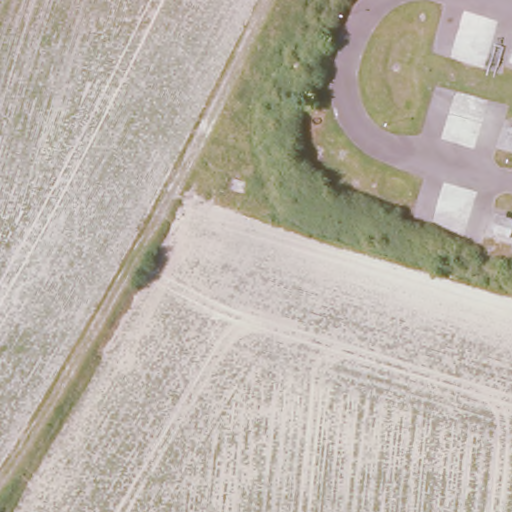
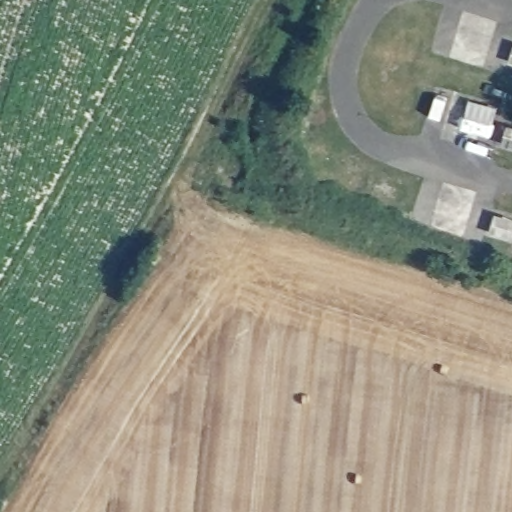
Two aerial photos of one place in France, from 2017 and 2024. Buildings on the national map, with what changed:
unchanged [(512,57),(512,59),(511,59),(512,57)]
unchanged [(507,133),(510,124),(512,124),(512,143),(505,141),(507,133)]
unchanged [(495,220),(498,211),(512,216),(512,232),(511,235),(493,230),(495,220)]

